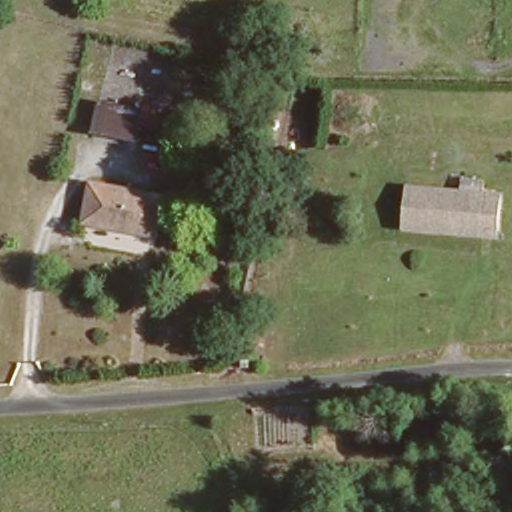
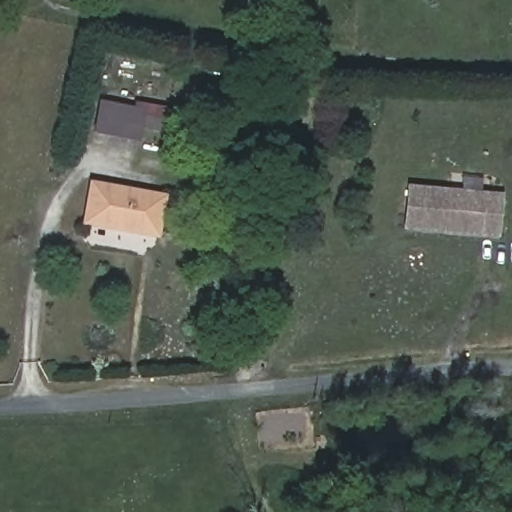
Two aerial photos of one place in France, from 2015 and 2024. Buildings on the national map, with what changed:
unchanged [(132,110),(129,139),(102,136),(106,108),(132,110)]
unchanged [(167,193),(164,234),(89,225),(94,185),(167,193)]
unchanged [(500,195),(497,235),(406,228),(407,188),(500,195)]

